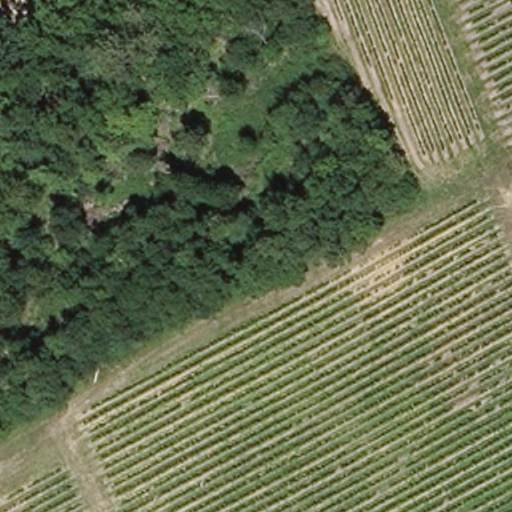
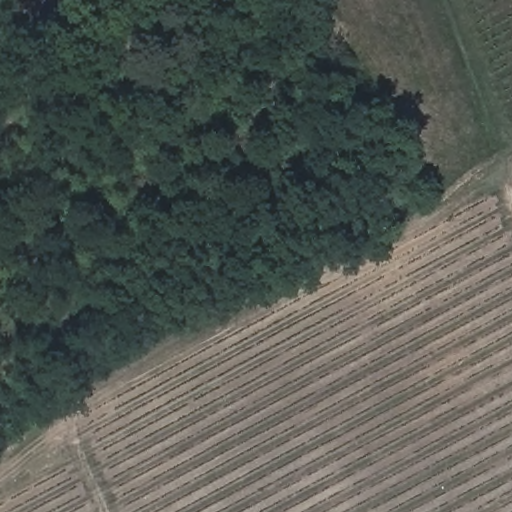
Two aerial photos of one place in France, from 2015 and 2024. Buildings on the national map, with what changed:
[]

